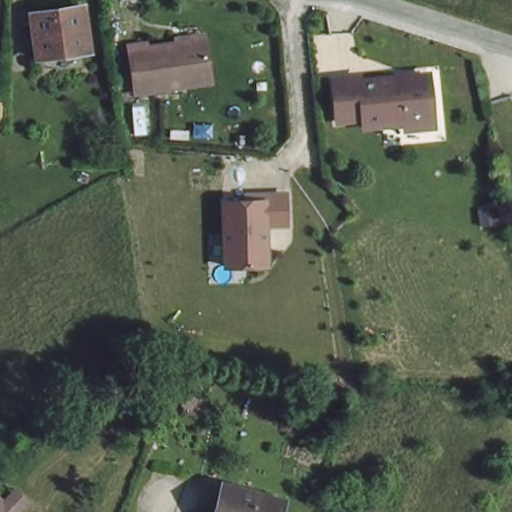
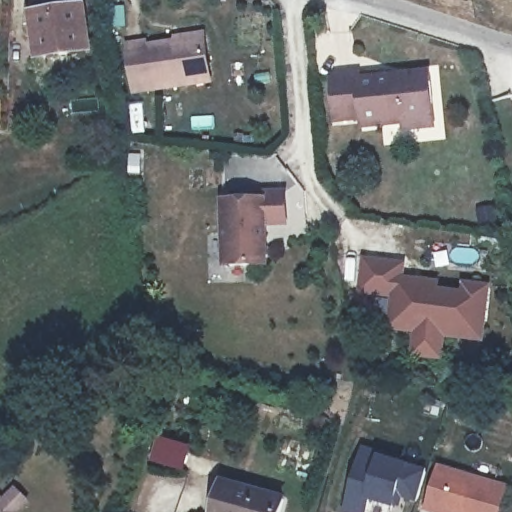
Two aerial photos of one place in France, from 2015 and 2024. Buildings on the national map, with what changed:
unchanged [(92,49),(40,55),(35,13),(87,7),(92,49)]
unchanged [(143,46),(197,38),(204,81),(128,92),(123,44),(142,41),(143,46)]
unchanged [(401,126),(401,122),(374,123),(359,124),(359,116),(358,113),(332,114),(329,69),(356,68),(357,73),(422,70),(425,114),(425,124),(401,126)]
unchanged [(289,225),(267,226),(269,268),(222,270),(220,197),(244,196),(244,189),(287,188),(289,225)]
new [(417,329),(390,327),(393,295),(360,292),(362,260),(401,263),(400,277),(437,280),(436,288),(462,289),(463,279),(487,281),(483,333),(444,331),(444,342),(443,354),(415,352),(416,340),(417,329)]
new [(157,445),(188,453),(182,475),(152,466),(157,445)]
new [(363,448),(378,453),(426,469),(416,503),(402,499),(400,508),(394,510),(371,502),(368,512),(342,512),(363,448)]
new [(504,487),(497,512),(436,512),(424,508),(437,467),(504,487)]
unchanged [(283,512),(217,512),(225,480),(286,499),(283,512)]
unchanged [(2,504),(12,494),(17,488),(28,498),(23,504),(16,512),(0,512),(0,503),(2,504)]

